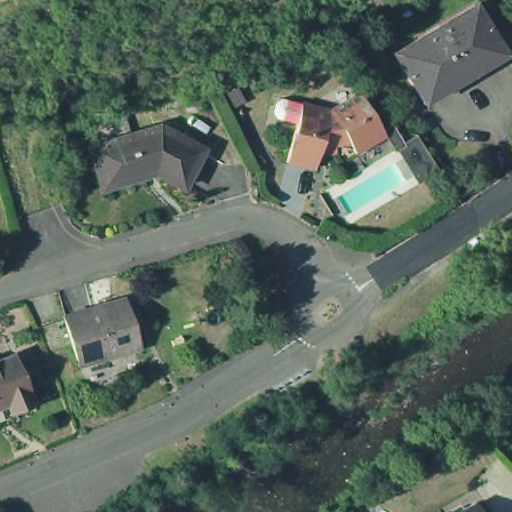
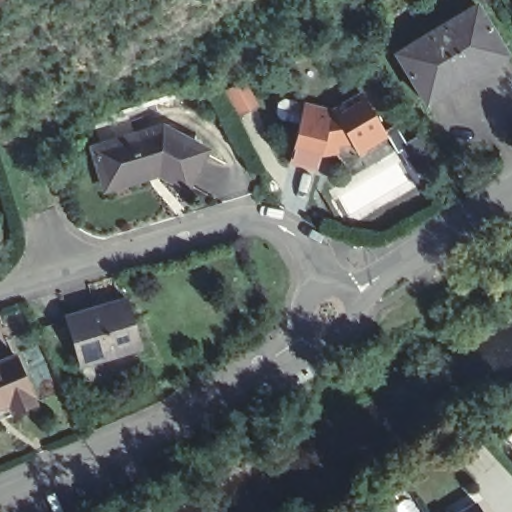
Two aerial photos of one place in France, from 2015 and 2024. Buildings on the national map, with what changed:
unchanged [(482,0),(512,46),(512,50),(434,100),(402,52),(482,0)]
unchanged [(405,144),(397,131),(357,157),(354,151),(347,155),(343,146),(329,146),(325,162),(295,154),(302,128),(306,116),(288,111),(283,105),(287,94),(292,89),(312,95),(340,104),(368,85),(392,122),(402,115),(413,133),(425,126),(447,163),(427,175),(409,141),(405,144)]
unchanged [(92,147),(104,144),(165,126),(206,147),(188,185),(160,171),(116,185),(105,188),(92,147)]
unchanged [(69,313),(129,295),(144,344),(113,354),(84,363),(81,353),(69,313)]
unchanged [(20,408),(15,398),(0,405),(0,356),(22,347),(44,398),(20,408)]
unchanged [(475,502),(481,512),(459,512),(475,502)]

